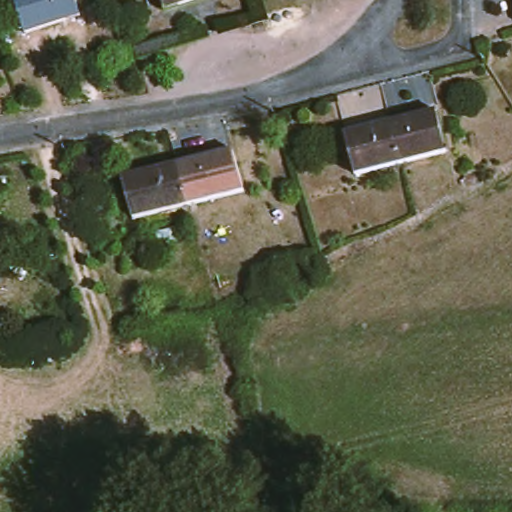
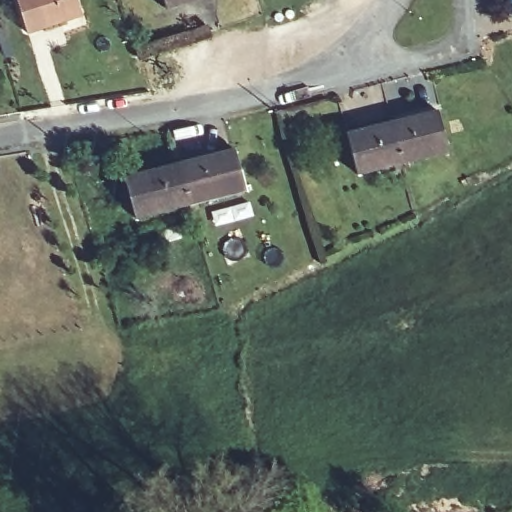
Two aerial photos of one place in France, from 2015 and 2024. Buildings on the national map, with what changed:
unchanged [(15,0),(71,0),(76,17),(26,32),(15,0)]
unchanged [(163,0),(201,0),(166,11),(163,0)]
unchanged [(387,124),(432,112),(442,152),(400,164),(387,124)]
unchanged [(355,177),(343,136),(387,124),(400,164),(355,177)]
unchanged [(179,168),(233,152),(245,192),(191,207),(179,168)]
unchanged [(135,222),(124,183),(179,168),(191,207),(135,222)]

